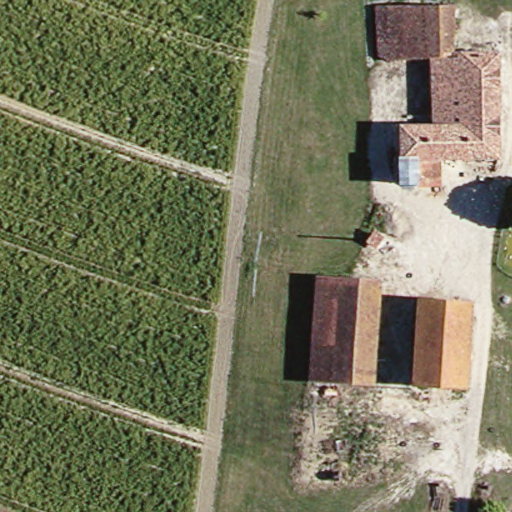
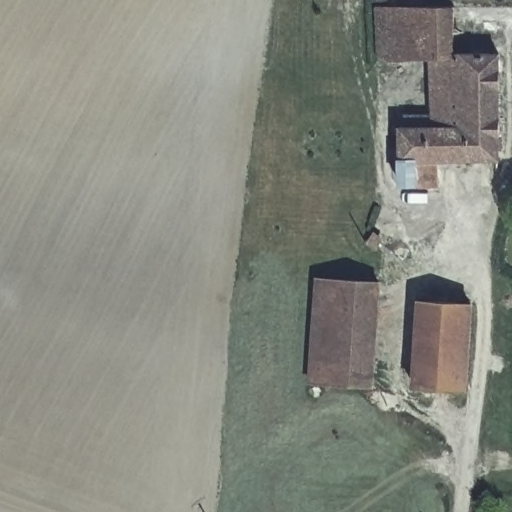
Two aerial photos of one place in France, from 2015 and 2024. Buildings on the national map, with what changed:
unchanged [(424,187),(405,186),(407,121),(435,123),(440,57),(436,57),(416,56),(398,55),(388,54),(391,3),(401,4),(418,5),(438,6),(462,7),(462,55),(507,56),(506,111),(503,165),(492,162),(448,160),(446,188),(424,187)]
unchanged [(380,235),(385,228),(397,236),(391,244),(380,235)]
unchanged [(317,375),(323,275),(383,277),(378,377),(317,375)]
unchanged [(426,381),(428,300),(480,301),(478,342),(478,346),(476,382),(426,381)]

